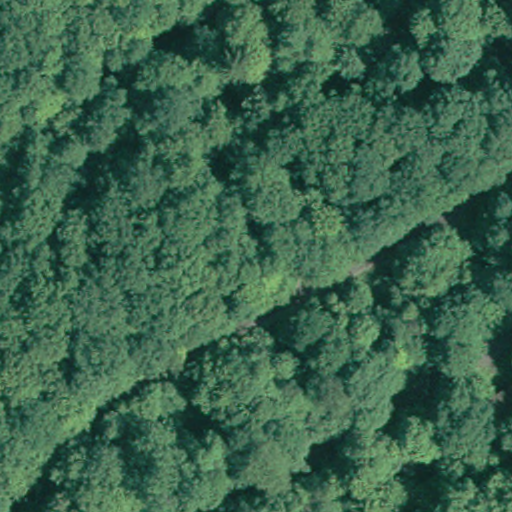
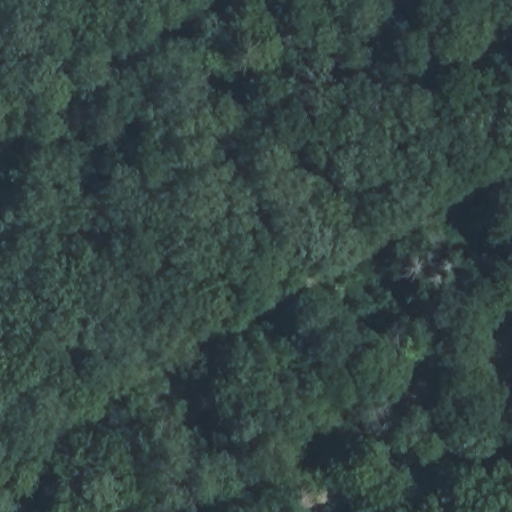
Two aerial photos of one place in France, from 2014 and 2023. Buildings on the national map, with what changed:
unchanged [(353,512),(279,512),(359,467),(372,502),(353,512)]

